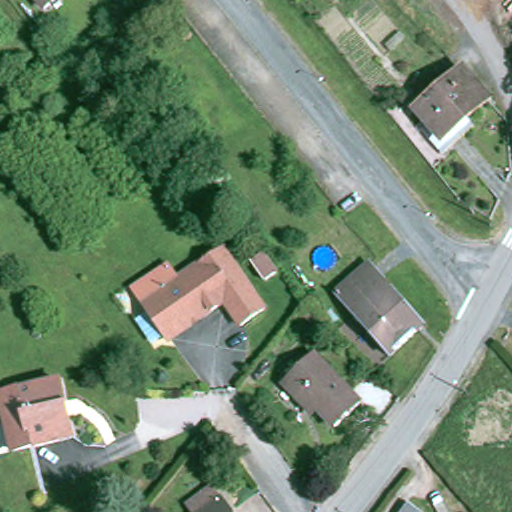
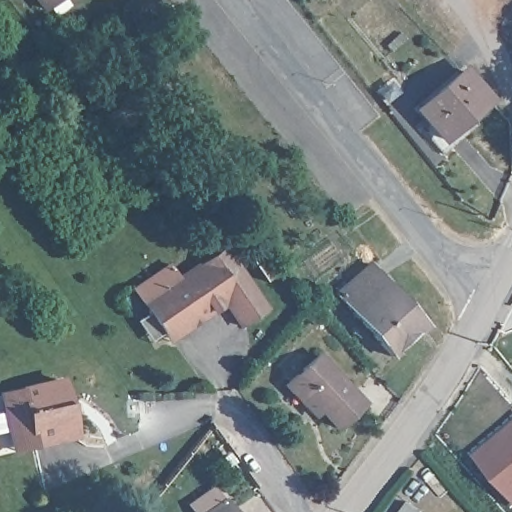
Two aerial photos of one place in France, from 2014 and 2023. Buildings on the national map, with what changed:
unchanged [(38,0),(56,0),(45,9),(38,0)]
unchanged [(417,110),(462,70),(489,100),(444,140),(417,110)]
unchanged [(165,337),(148,312),(150,299),(224,249),(265,309),(242,325),(225,302),(202,317),(168,341),(165,337)]
unchanged [(337,295),(371,264),(425,325),(392,356),(337,295)]
unchanged [(335,428),(315,405),(310,411),(285,385),(315,355),(361,405),(335,428)]
unchanged [(0,400),(0,395),(60,381),(74,437),(32,446),(13,451),(8,433),(0,400)]
new [(475,457),(512,425),(512,500),(475,457)]
unchanged [(232,512),(197,512),(194,508),(214,494),(220,503),(224,501),(232,512)]
unchanged [(410,502),(422,512),(402,512),(410,502)]

